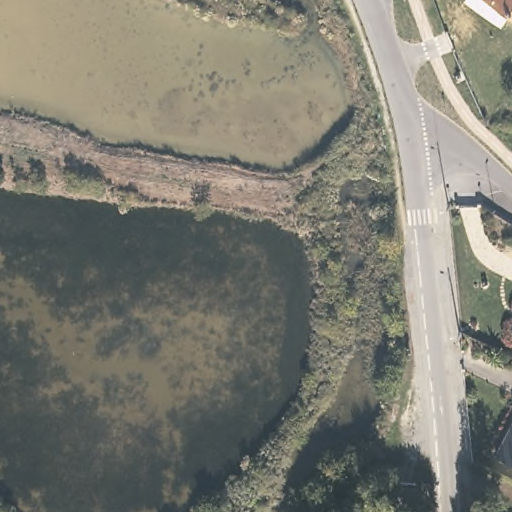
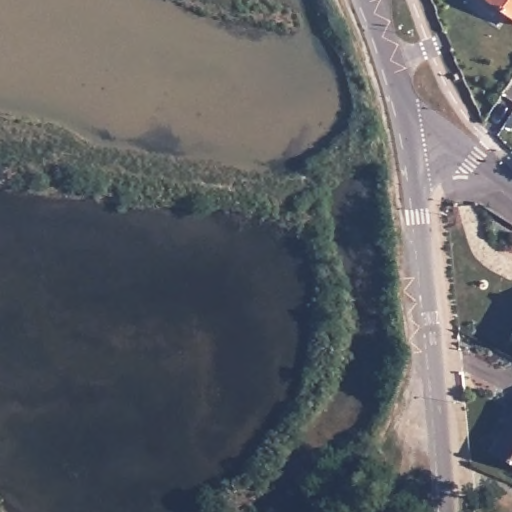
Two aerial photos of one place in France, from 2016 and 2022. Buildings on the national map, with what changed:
unchanged [(512,11),(496,0),(512,0),(512,11)]
unchanged [(512,334),(512,341),(509,340),(512,334)]
unchanged [(512,423),(512,461),(496,453),(512,423)]

